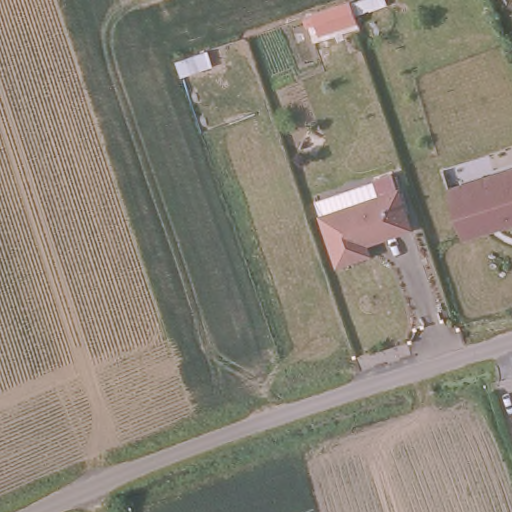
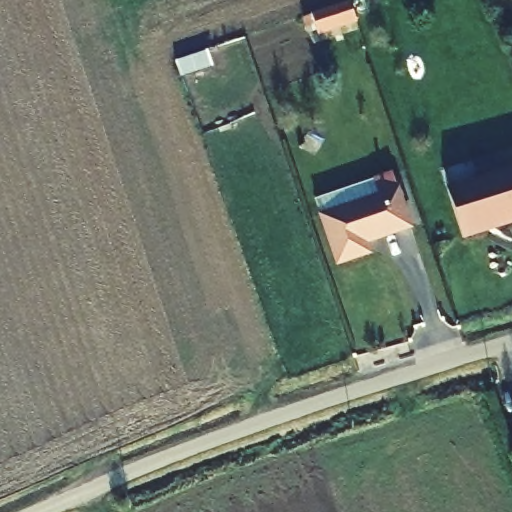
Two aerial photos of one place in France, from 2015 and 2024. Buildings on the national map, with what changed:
unchanged [(463,230),(447,181),(512,159),(512,213),(463,230)]
unchanged [(380,197),(393,193),(406,231),(393,236),(361,246),(365,257),(333,267),(317,219),(380,197)]

